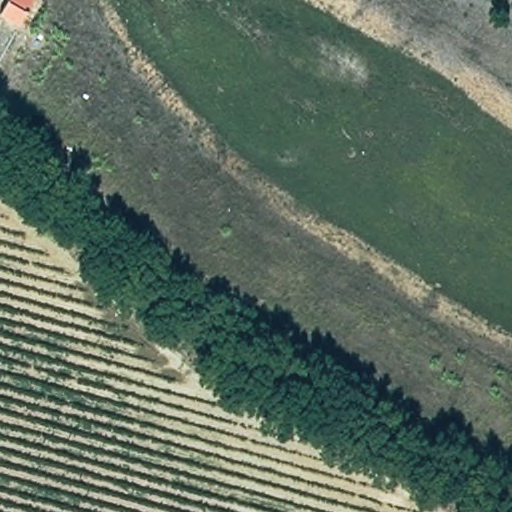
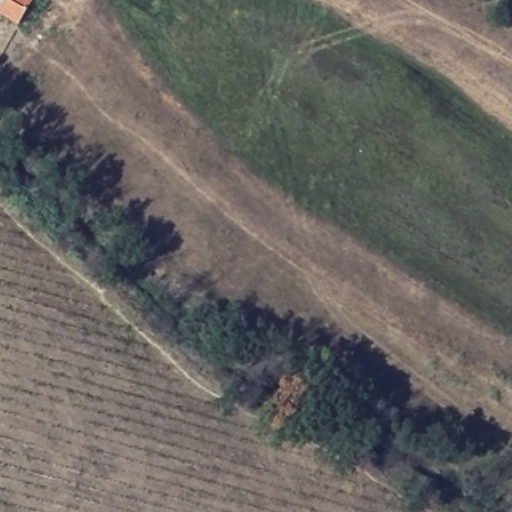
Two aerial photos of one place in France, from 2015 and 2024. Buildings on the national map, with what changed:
unchanged [(31,0),(18,24),(0,13),(0,6),(4,0),(31,0)]

